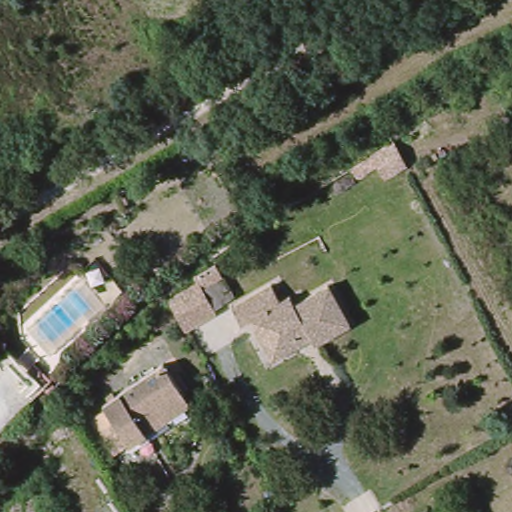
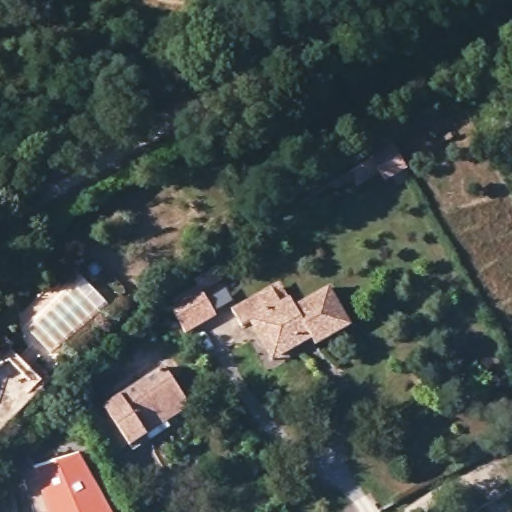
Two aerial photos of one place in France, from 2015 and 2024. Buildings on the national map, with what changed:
unchanged [(512,74),(512,94),(503,79),(512,74)]
unchanged [(199,281),(196,275),(219,261),(226,275),(206,288),(219,310),(186,330),(169,298),(199,281)]
unchanged [(86,272),(110,300),(55,351),(30,324),(86,272)]
unchanged [(331,287),(354,324),(320,344),(316,338),(286,356),(276,340),(268,346),(253,322),(244,327),(233,311),(273,288),(283,304),(292,298),(298,307),(331,287)]
unchanged [(16,345),(32,362),(41,352),(58,372),(44,387),(39,392),(17,374),(22,367),(13,357),(0,363),(0,344),(3,351),(16,345)]
unchanged [(138,447),(106,411),(106,410),(161,364),(193,400),(170,420),(153,434),(138,447)]
new [(33,469),(78,453),(110,512),(45,512),(33,469)]

